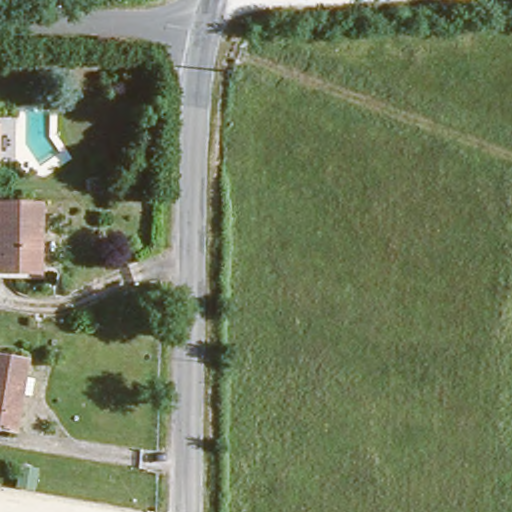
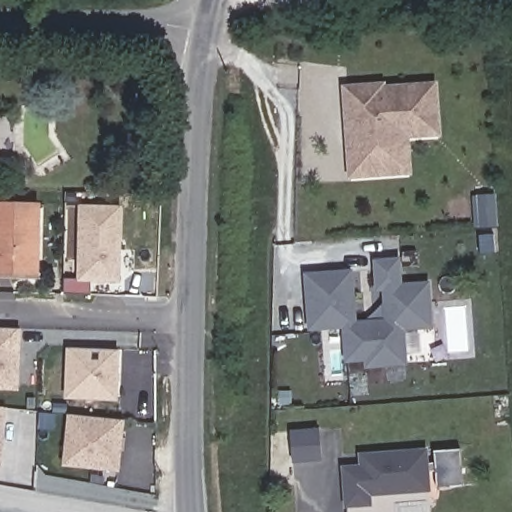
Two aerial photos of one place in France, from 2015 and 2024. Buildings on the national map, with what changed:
new [(410,139),(413,175),(348,179),(341,85),(386,82),(386,85),(437,81),(442,137),(410,139)]
unchanged [(39,266),(0,264),(0,197),(44,199),(39,266)]
new [(89,282),(89,294),(64,293),(64,280),(77,280),(78,204),(122,205),(121,281),(117,281),(89,282)]
new [(434,328),(405,331),(408,367),(366,370),(365,362),(346,362),(342,329),(307,331),(302,272),(353,268),(357,320),(384,320),(382,291),(376,292),(373,259),(400,257),(402,282),(430,281),(434,328)]
new [(20,392),(0,391),(0,327),(21,328),(20,392)]
new [(118,402),(64,399),(66,348),(120,351),(118,402)]
demolished [(6,386),(10,387),(2,425),(0,424),(0,353),(16,356),(13,371),(8,370),(6,386)]
new [(0,407),(7,408),(0,467),(0,407)]
new [(71,415),(124,420),(119,470),(66,464),(71,415)]
new [(320,427),(322,455),(292,457),(291,430),(320,427)]
new [(372,496),(372,507),(345,508),(342,466),(359,464),(358,453),(427,447),(431,492),(372,496)]

